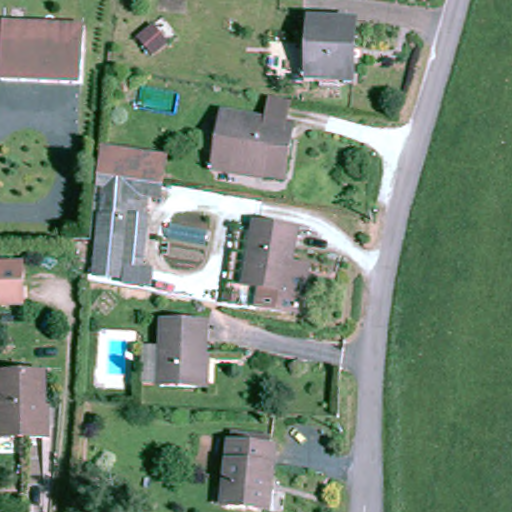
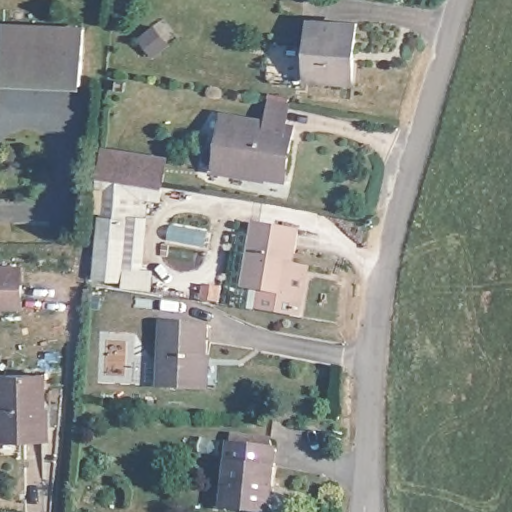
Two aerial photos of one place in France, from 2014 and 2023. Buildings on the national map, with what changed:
unchanged [(85,84),(7,76),(12,23),(90,31),(85,84)]
unchanged [(361,83),(315,80),(319,23),(365,25),(361,83)]
unchanged [(291,183),(219,175),(225,120),(272,126),(275,103),(295,105),(292,129),(297,129),(291,183)]
unchanged [(167,154),(161,218),(135,211),(132,264),(158,267),(155,286),(97,280),(108,189),(98,190),(103,145),(167,154)]
unchanged [(297,223),(292,256),(307,259),(301,307),(259,302),(262,283),(246,280),(255,216),(297,223)]
unchanged [(27,306),(0,306),(0,269),(26,269),(27,306)]
unchanged [(169,388),(167,324),(210,324),(212,388),(169,388)]
unchanged [(8,437),(12,374),(57,376),(53,439),(8,437)]
unchanged [(235,496),(230,496),(235,452),(236,442),(276,445),(275,456),(282,456),(278,493),(276,512),(234,512),(235,496)]

